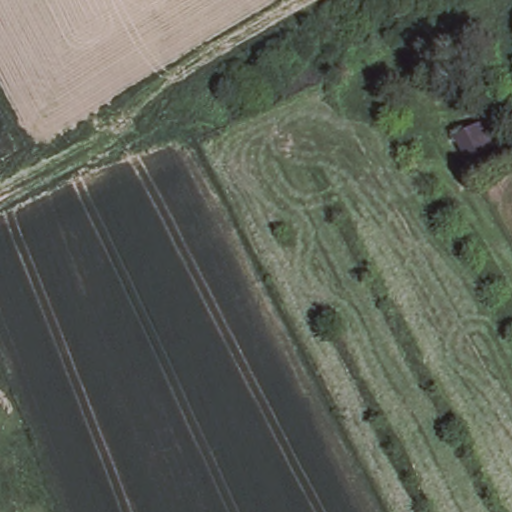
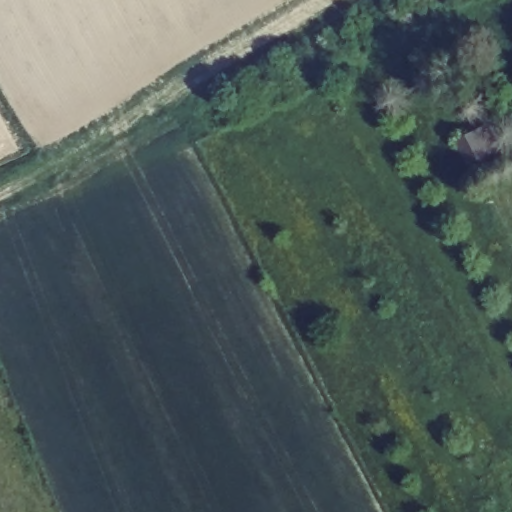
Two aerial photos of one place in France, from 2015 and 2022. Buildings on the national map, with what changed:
unchanged [(464,162),(455,141),(482,126),(492,147),(464,162)]

